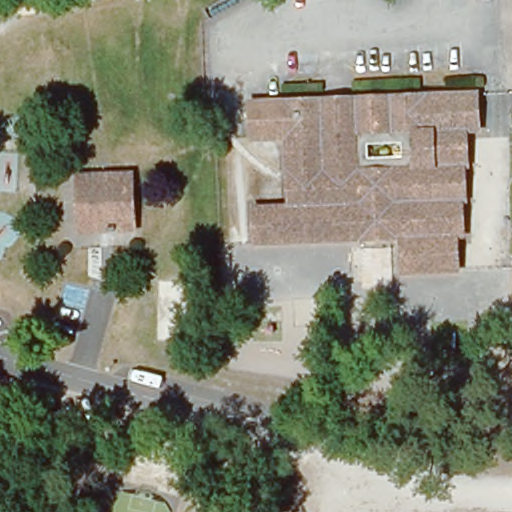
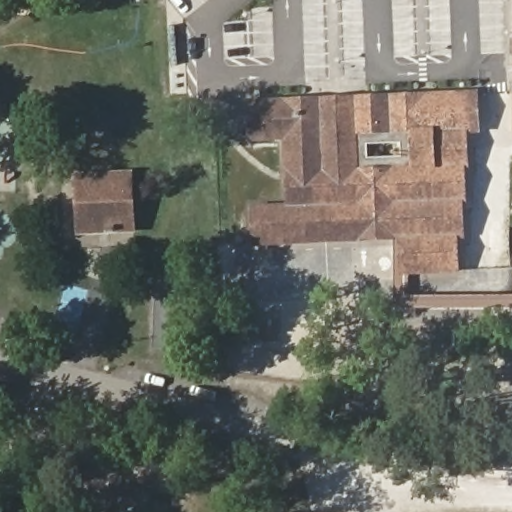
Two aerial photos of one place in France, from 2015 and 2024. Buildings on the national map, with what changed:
unchanged [(260,128),(260,93),(326,94),(360,94),(480,95),(480,128),(473,128),(472,163),(465,163),(465,197),(458,197),(457,234),(452,234),(451,264),(401,261),(402,238),(359,237),(360,226),(360,196),(290,195),(292,129),(260,128)]
unchanged [(134,228),(81,228),(81,171),(135,170),(134,228)]
unchanged [(257,236),(258,194),(290,195),(360,196),(360,226),(359,237),(257,236)]

